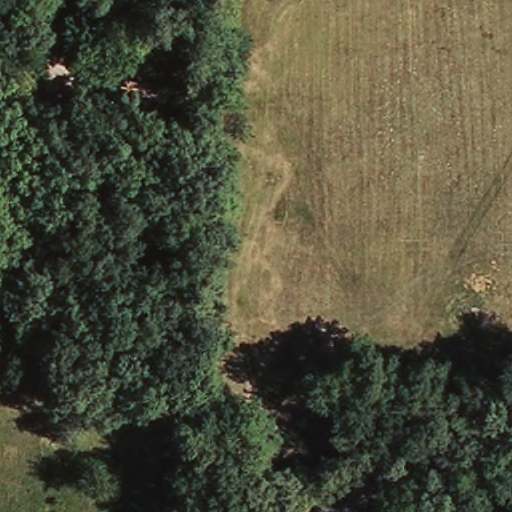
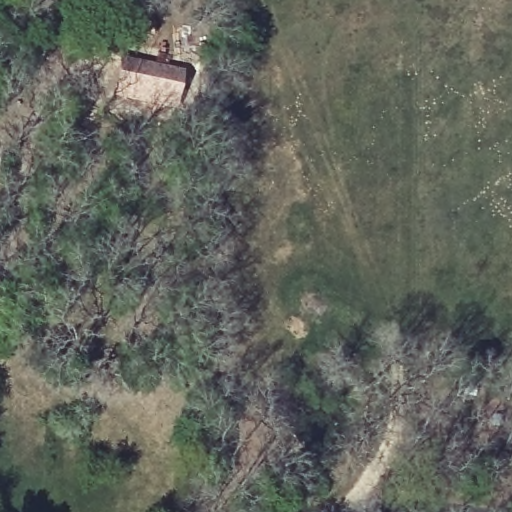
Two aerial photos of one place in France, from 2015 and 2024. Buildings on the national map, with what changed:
new [(121,58),(185,71),(175,114),(111,100),(121,58)]

